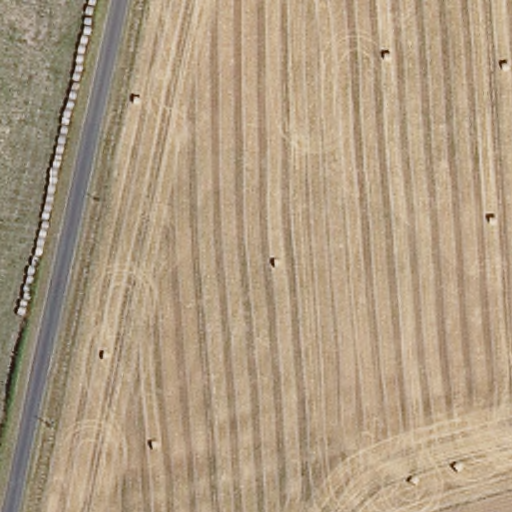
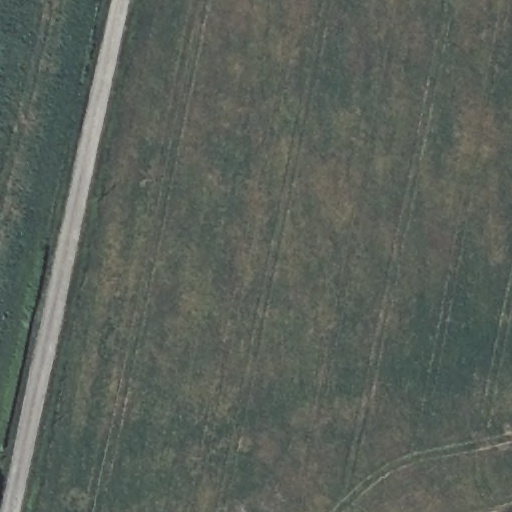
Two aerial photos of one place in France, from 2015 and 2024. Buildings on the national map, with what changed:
[]

